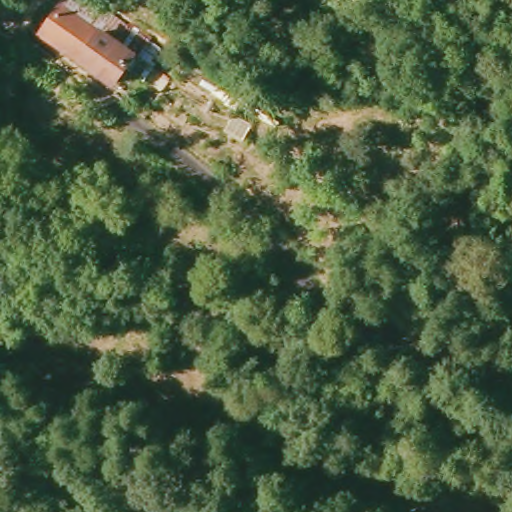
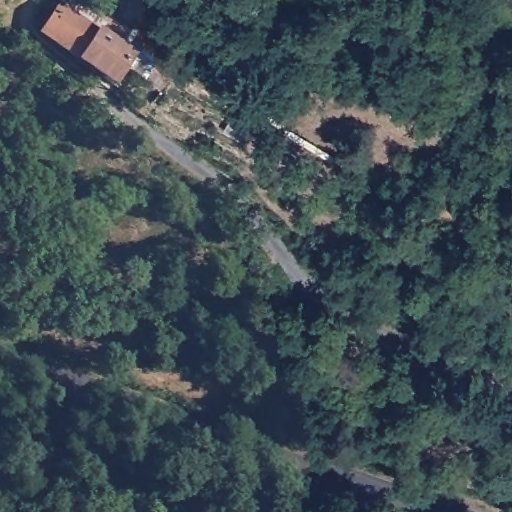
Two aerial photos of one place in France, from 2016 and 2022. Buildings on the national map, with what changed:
unchanged [(122,50),(99,84),(30,28),(51,0),(60,0),(107,36),(122,50)]
unchanged [(107,36),(60,0),(86,0),(117,23),(107,36)]

